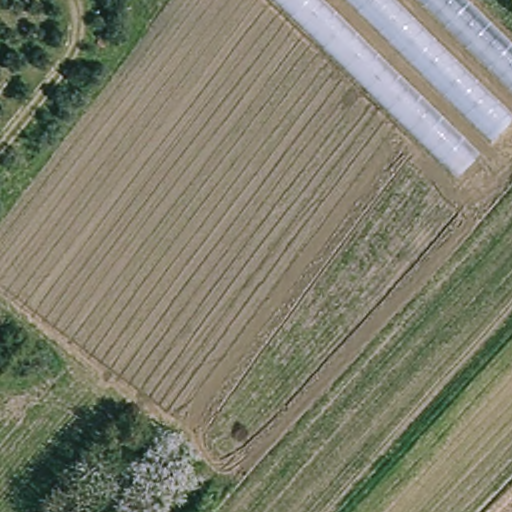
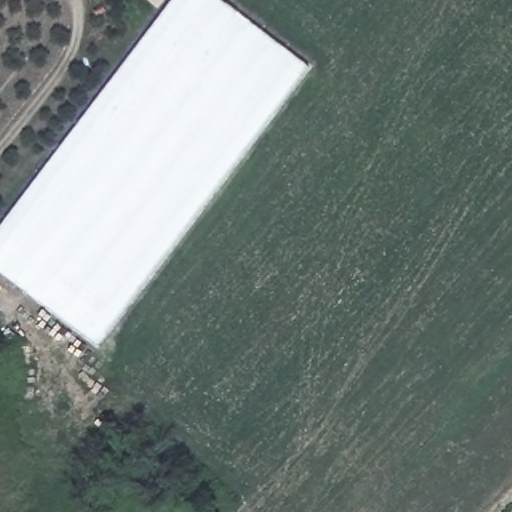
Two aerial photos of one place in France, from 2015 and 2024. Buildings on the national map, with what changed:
new [(97,345),(0,270),(0,226),(172,0),(221,0),(309,66),(97,345)]
new [(156,9),(146,0),(163,0),(156,9)]

